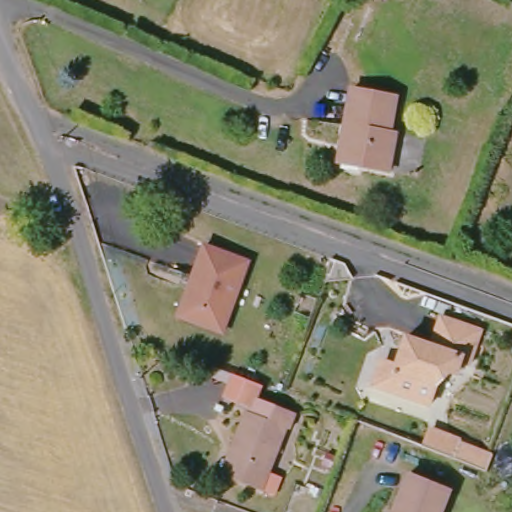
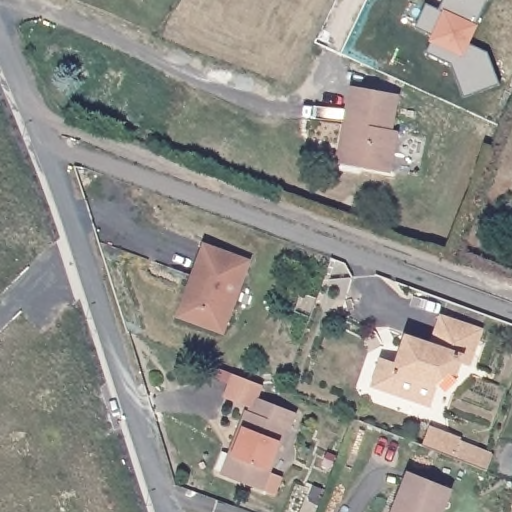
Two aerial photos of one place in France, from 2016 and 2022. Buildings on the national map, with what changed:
new [(431,41),(433,37),(415,28),(425,4),(438,9),(443,0),(486,0),(475,23),(478,25),(470,44),(486,52),(500,85),(463,98),(451,65),(425,53),(431,41)]
unchanged [(386,96),(382,130),(390,131),(382,175),(351,172),(352,155),(336,153),(341,123),(335,123),(340,90),(386,96)]
unchanged [(189,276),(201,246),(245,263),(217,333),(181,318),(172,315),(189,276)]
unchanged [(376,362),(385,362),(395,366),(401,356),(395,352),(401,338),(425,347),(435,320),(475,334),(462,368),(455,365),(451,377),(444,376),(431,387),(425,406),(367,386),(376,362)]
unchanged [(270,496),(257,492),(218,478),(242,412),(245,414),(248,406),(222,397),(231,373),(262,385),(256,401),(290,413),(285,429),(281,429),(264,474),(276,478),(270,496)]
unchanged [(462,445),(455,463),(425,451),(432,433),(462,445)]
unchanged [(452,498),(446,512),(397,512),(410,480),(452,498)]

